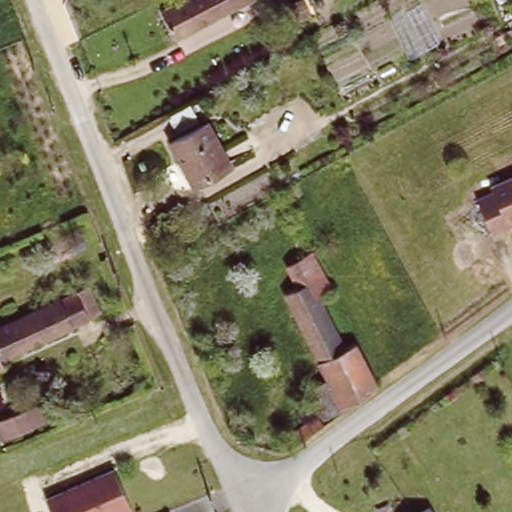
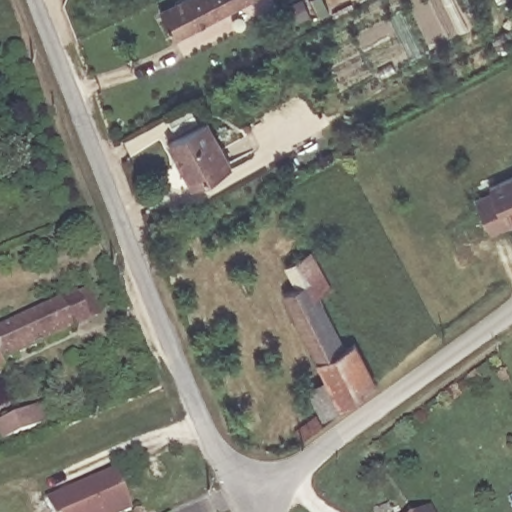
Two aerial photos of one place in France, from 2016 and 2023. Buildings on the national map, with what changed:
unchanged [(192,0),(260,0),(181,41),(168,13),(192,0)]
unchanged [(211,111),(235,155),(198,174),(174,130),(211,111)]
unchanged [(504,227),(487,235),(472,201),(488,194),(485,188),(512,176),(512,224),(504,227)]
unchanged [(313,388),(328,381),(277,283),(291,276),(286,266),(314,252),(332,288),(319,295),(346,346),(358,339),(379,381),(343,409),(329,419),(313,388)]
unchanged [(0,368),(0,328),(5,329),(65,304),(83,296),(93,322),(75,329),(2,360),(4,366),(0,368)]
unchanged [(28,430),(9,438),(1,419),(19,412),(28,430)]
unchanged [(320,426),(303,439),(299,430),(319,416),(324,423),(320,426)]
unchanged [(131,508),(122,512),(53,512),(44,496),(112,466),(131,508)]
unchanged [(429,508),(431,512),(422,512),(429,508)]

